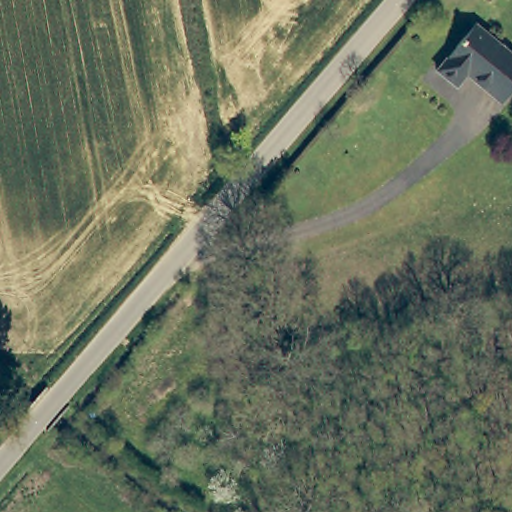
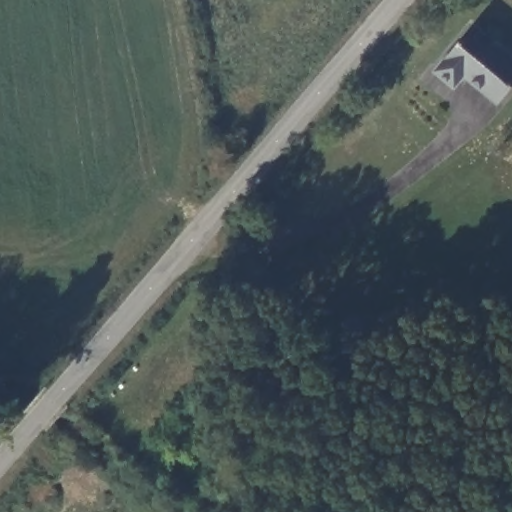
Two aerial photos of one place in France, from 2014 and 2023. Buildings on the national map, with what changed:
unchanged [(475,22),(512,52),(512,86),(500,101),(465,75),(455,85),(435,68),(475,22)]

